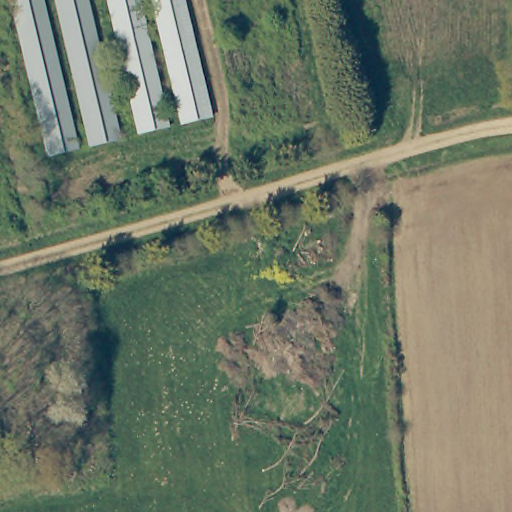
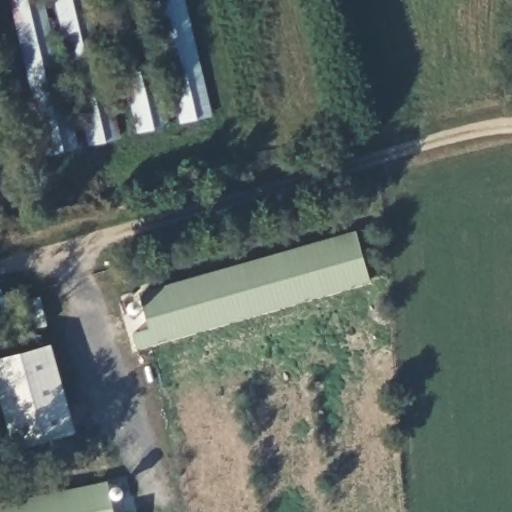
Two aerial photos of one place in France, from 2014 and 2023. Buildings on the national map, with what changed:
unchanged [(93,152),(58,0),(86,0),(121,146),(93,152)]
unchanged [(138,138),(108,0),(138,0),(167,131),(138,138)]
unchanged [(150,0),(184,0),(187,15),(210,119),(202,121),(179,126),(150,0)]
unchanged [(43,2),(79,158),(48,162),(14,9),(43,2)]
new [(138,350),(133,332),(149,327),(139,291),(356,229),(371,282),(138,350)]
new [(114,512),(0,512),(0,504),(106,482),(114,512)]

